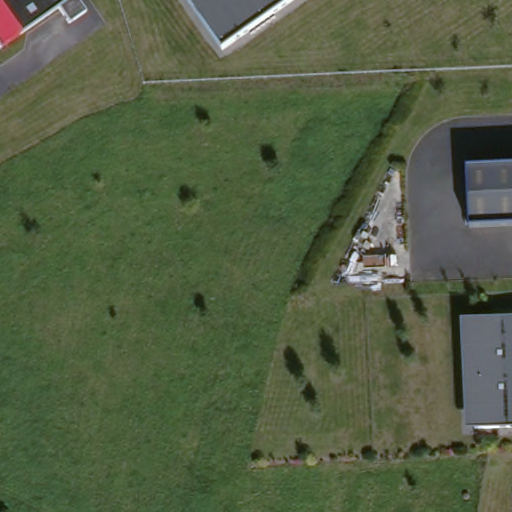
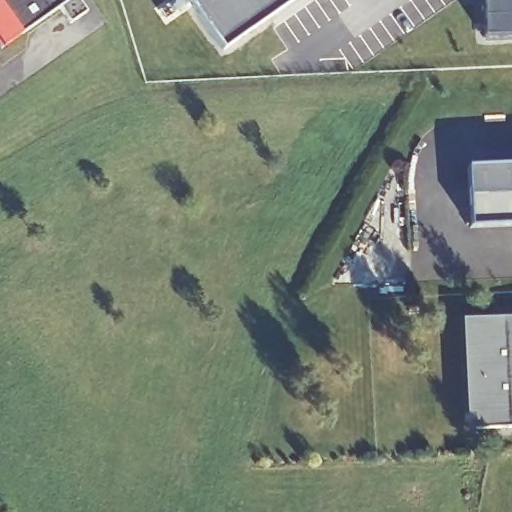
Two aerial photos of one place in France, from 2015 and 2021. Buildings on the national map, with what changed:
unchanged [(69,0),(5,47),(0,39),(0,0),(69,0)]
unchanged [(190,0),(288,0),(222,46),(190,0)]
new [(482,0),(512,0),(512,37),(483,38),(482,0)]
unchanged [(472,167),(512,165),(512,226),(475,228),(472,167)]
unchanged [(512,315),(512,426),(468,427),(462,317),(512,315)]

